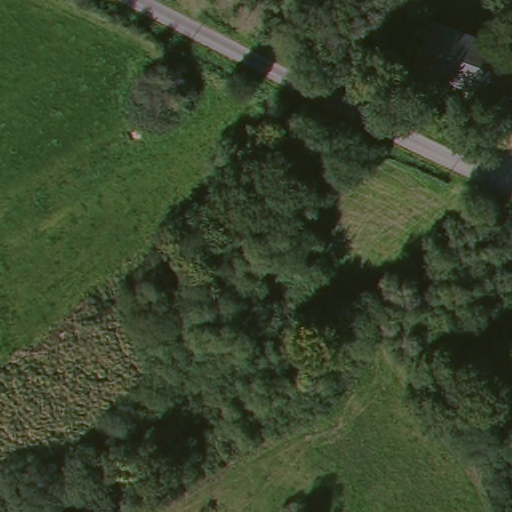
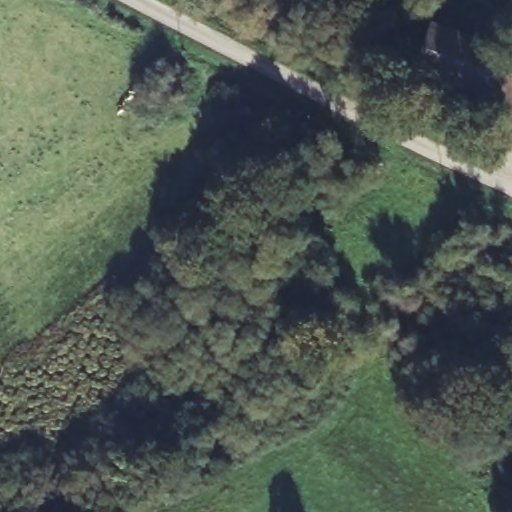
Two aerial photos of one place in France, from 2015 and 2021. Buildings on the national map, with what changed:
unchanged [(480,94),(415,69),(432,26),(435,27),(499,51),(480,94)]
unchanged [(500,48),(500,30),(512,29),(512,48),(500,48)]

